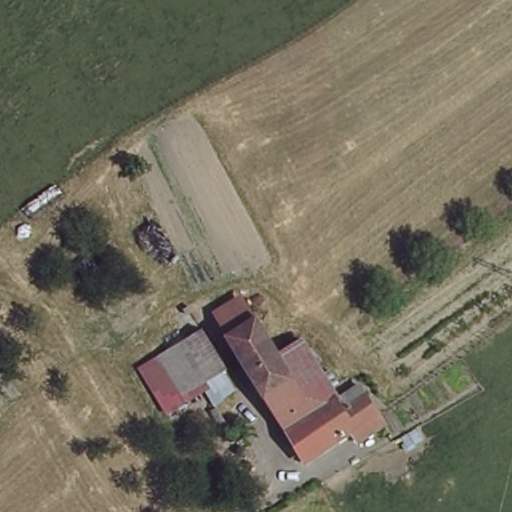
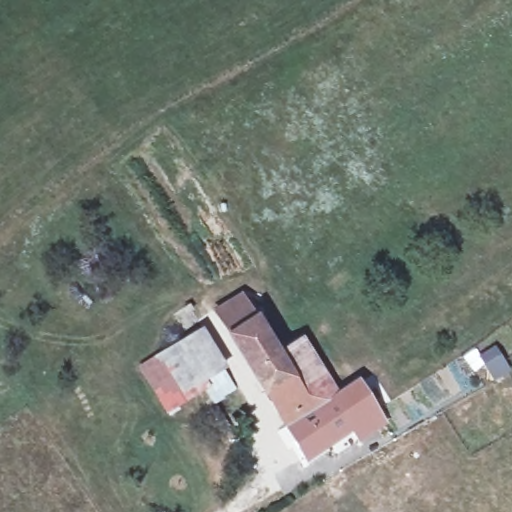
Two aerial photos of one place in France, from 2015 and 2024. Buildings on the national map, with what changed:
unchanged [(235,298),(273,360),(294,345),(337,411),(359,393),(375,414),(384,427),(361,443),(351,430),(304,465),(256,392),(208,315),(235,298)]
unchanged [(201,330),(225,375),(173,401),(155,358),(201,330)]

